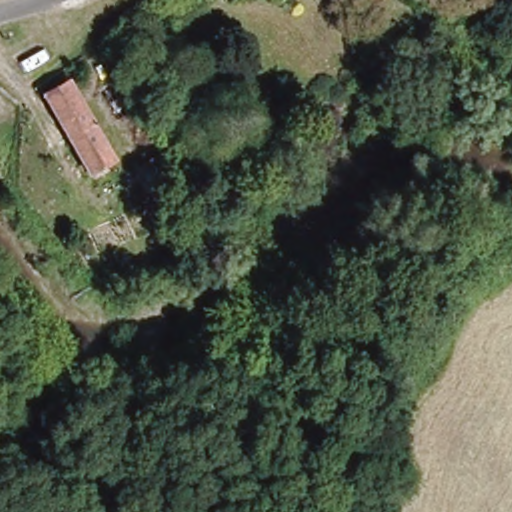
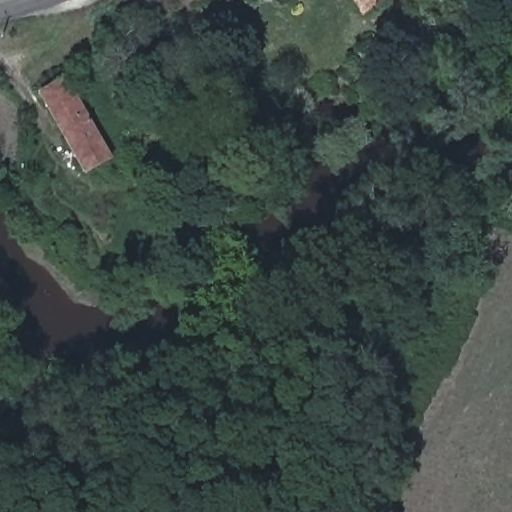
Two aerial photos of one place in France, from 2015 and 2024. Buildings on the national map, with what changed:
unchanged [(512,9),(512,14),(510,10),(512,9)]
unchanged [(41,94),(65,80),(109,158),(85,171),(41,94)]
unchanged [(137,167),(160,156),(172,182),(149,193),(137,167)]

